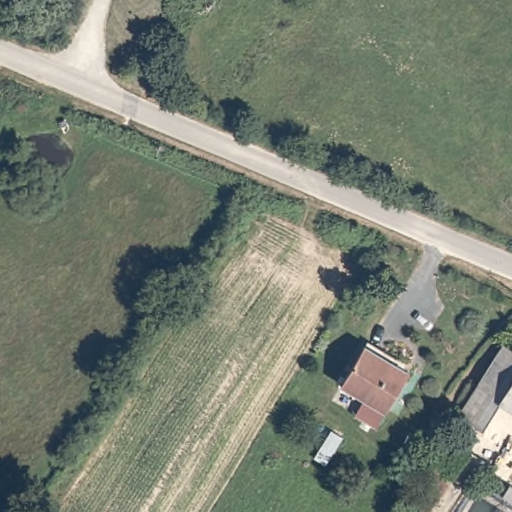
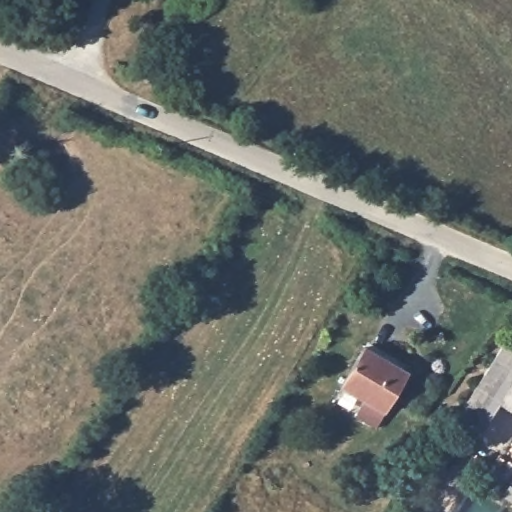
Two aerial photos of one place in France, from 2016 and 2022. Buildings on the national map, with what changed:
unchanged [(490,419),(465,405),(502,339),(512,345),(512,381),(501,400),(490,419)]
unchanged [(407,370),(390,403),(342,378),(360,346),(407,370)]
unchanged [(501,400),(512,381),(512,406),(501,400)]

